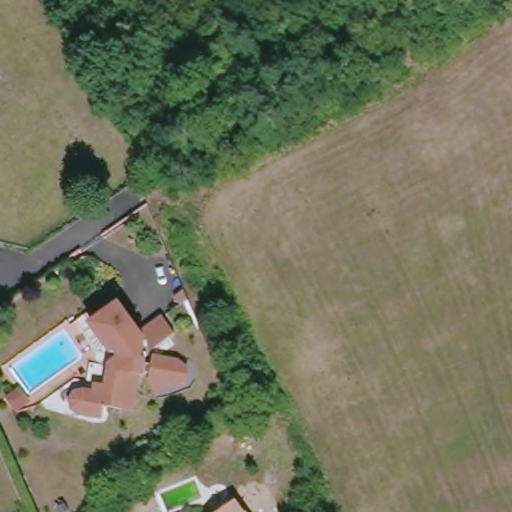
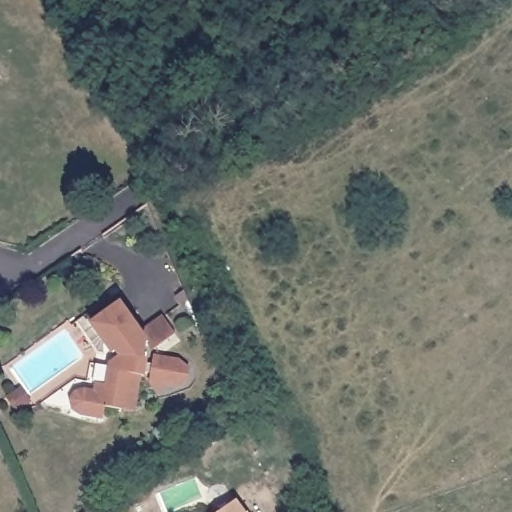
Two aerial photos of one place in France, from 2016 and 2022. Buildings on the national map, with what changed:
unchanged [(127,411),(125,410),(110,408),(107,419),(89,415),(85,413),(79,409),(78,406),(78,401),(80,398),(82,395),(87,394),(92,393),(100,394),(103,386),(113,388),(114,385),(118,363),(125,358),(123,353),(120,355),(100,327),(127,308),(147,336),(170,320),(182,336),(158,353),(157,350),(155,348),(157,344),(152,343),(148,361),(152,362),(151,365),(158,366),(159,359),(184,363),(193,371),(191,382),(180,386),(172,385),(163,392),(155,381),(157,375),(150,374),(149,378),(145,377),(142,394),(138,413),(127,411)]
unchanged [(25,386),(34,399),(23,407),(14,394),(25,386)]
unchanged [(248,512),(223,512),(239,500),(248,512)]

